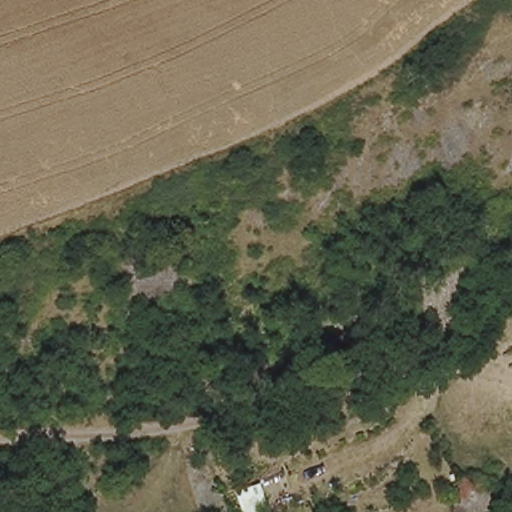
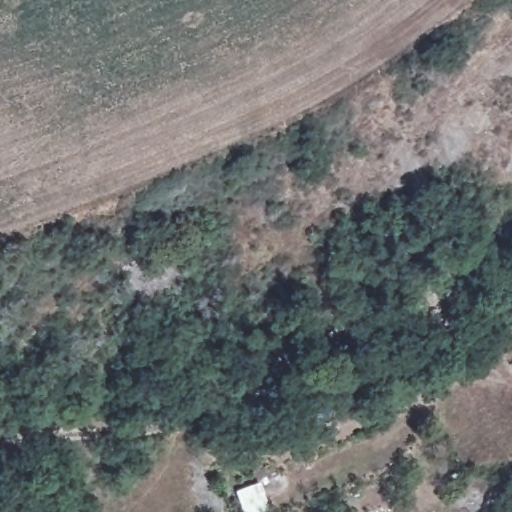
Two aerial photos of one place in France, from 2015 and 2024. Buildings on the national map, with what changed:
unchanged [(266,483),(274,512),(246,512),(239,489),(266,483)]

